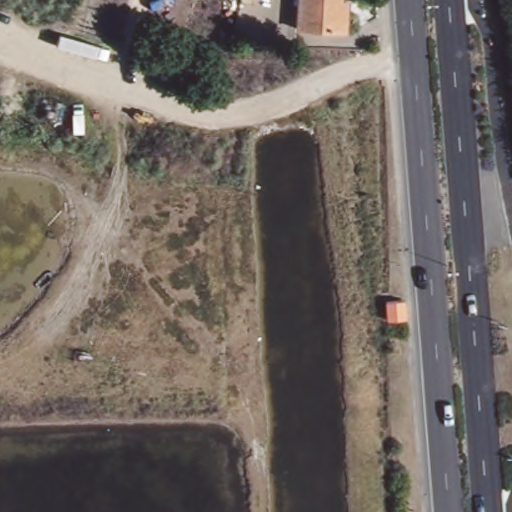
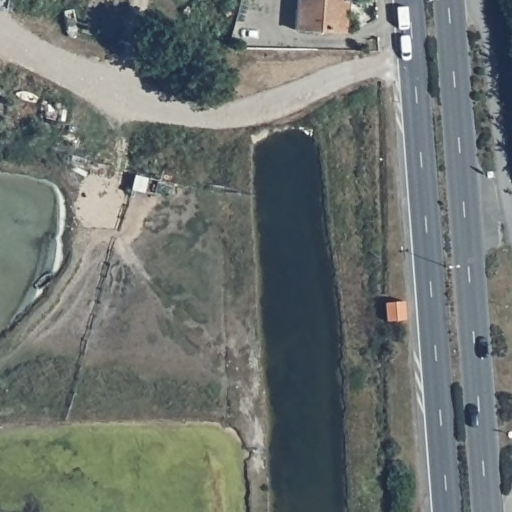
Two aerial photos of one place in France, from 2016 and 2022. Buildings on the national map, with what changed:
unchanged [(297,30),(298,0),(354,0),(354,2),(349,2),(348,9),(347,33),(297,30)]
unchanged [(407,322),(387,322),(386,305),(407,304),(407,322)]

